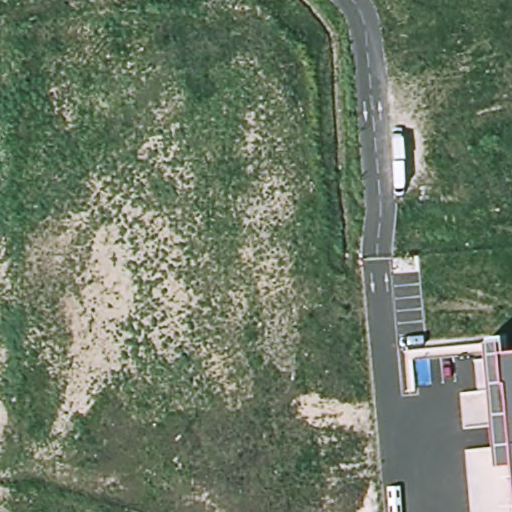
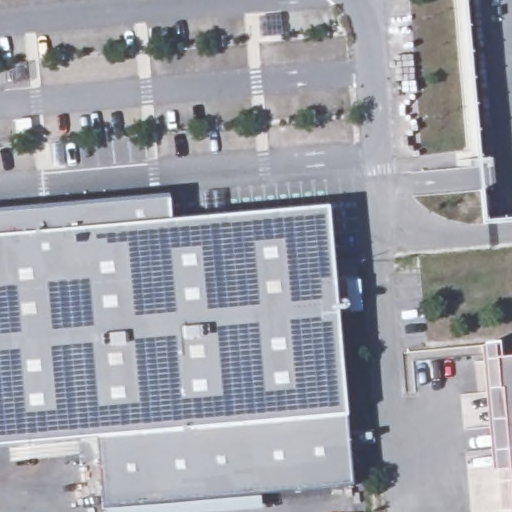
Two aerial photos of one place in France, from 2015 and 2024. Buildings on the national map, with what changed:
new [(347,417),(351,486),(105,507),(97,438),(0,448),(0,211),(168,196),(172,221),(327,209),(347,417)]
unchanged [(512,507),(502,391),(496,391),(495,362),(512,360),(512,507)]

